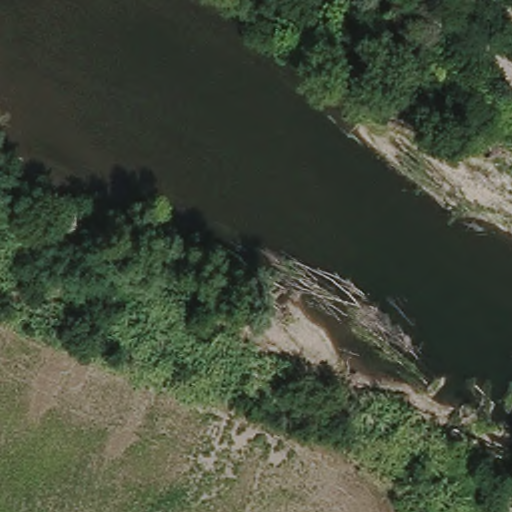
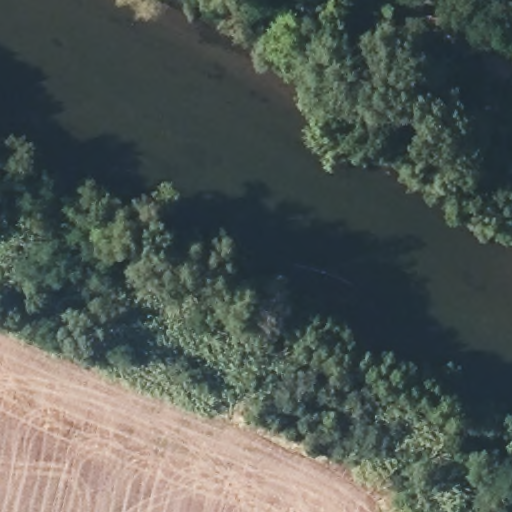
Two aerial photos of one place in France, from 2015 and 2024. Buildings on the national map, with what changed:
unchanged [(512,42),(497,34),(505,20),(512,25),(512,42)]
unchanged [(490,39),(480,56),(450,38),(459,21),(490,39)]
unchanged [(445,441),(427,434),(442,407),(458,417),(445,441)]

